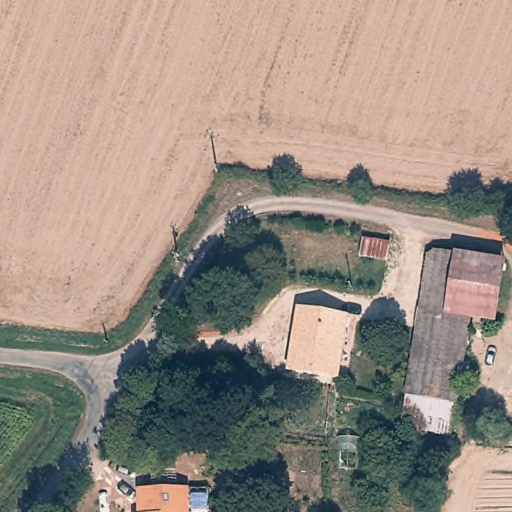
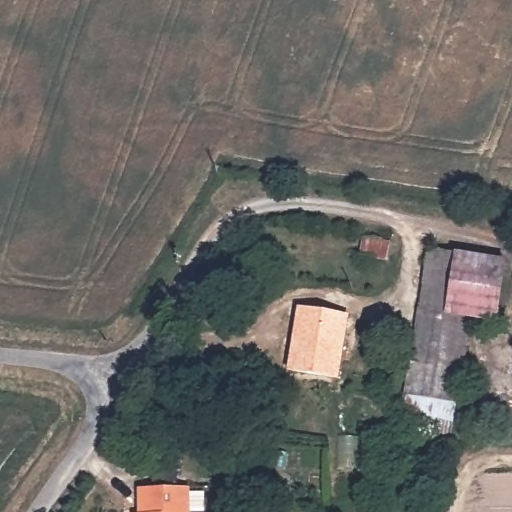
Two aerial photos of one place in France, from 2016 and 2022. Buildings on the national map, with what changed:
unchanged [(362,244),(385,248),(382,265),(359,262),(362,244)]
unchanged [(447,316),(472,320),(454,433),(403,426),(430,251),(457,255),(447,316)]
unchanged [(507,263),(499,324),(472,320),(447,316),(457,255),(507,263)]
unchanged [(297,311),(348,320),(337,379),(287,370),(297,311)]
unchanged [(191,491),(190,512),(142,512),(143,491),(191,491)]

